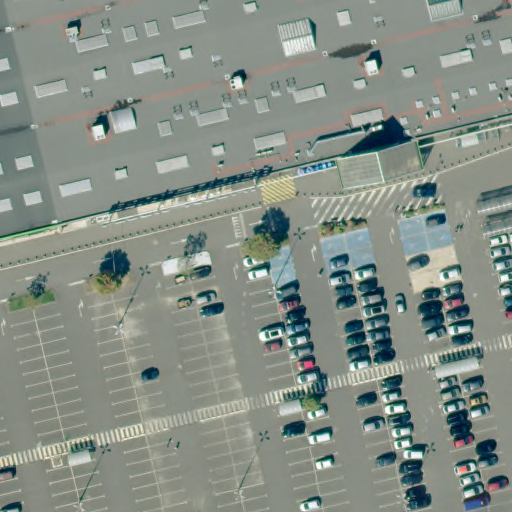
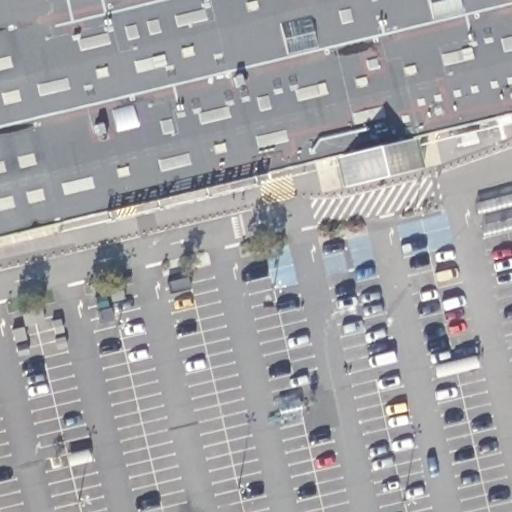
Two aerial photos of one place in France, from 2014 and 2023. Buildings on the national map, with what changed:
unchanged [(60,227),(0,240),(0,0),(3,0),(61,227),(60,227)]
unchanged [(422,142),(429,172),(347,192),(340,161),(61,227),(3,0),(512,0),(512,121),(422,142)]

